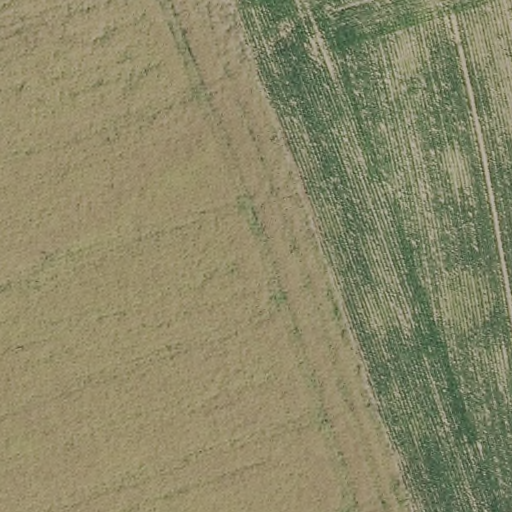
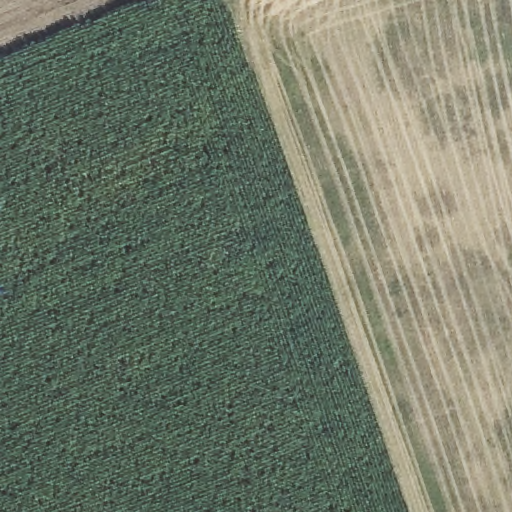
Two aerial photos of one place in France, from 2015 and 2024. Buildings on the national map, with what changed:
[]

